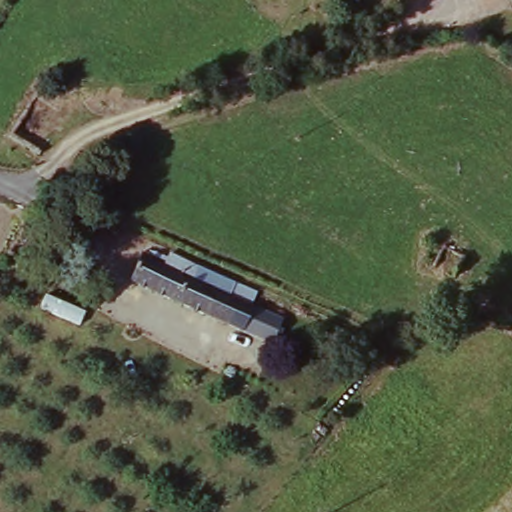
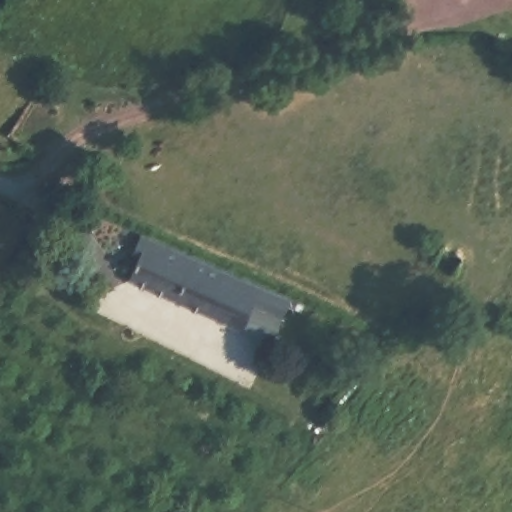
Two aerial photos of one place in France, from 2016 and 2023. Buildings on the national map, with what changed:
unchanged [(164,257),(177,263),(179,258),(226,280),(265,297),(260,310),(262,311),(251,336),(237,330),(139,285),(151,257),(162,262),(164,257)]

